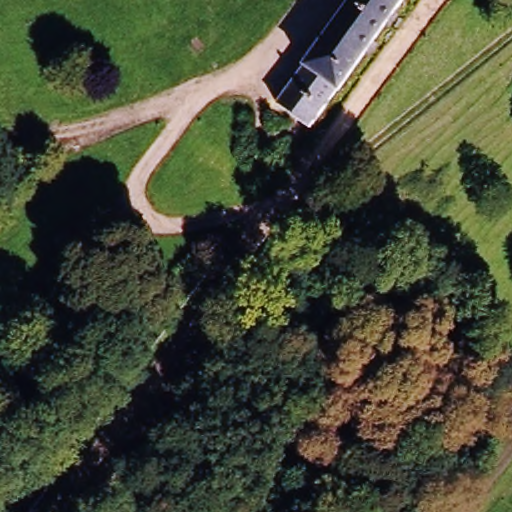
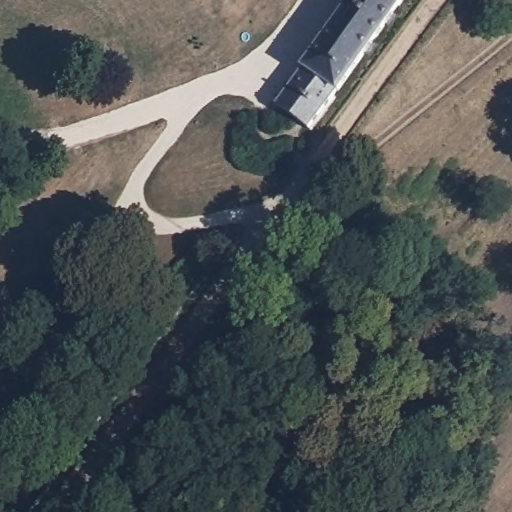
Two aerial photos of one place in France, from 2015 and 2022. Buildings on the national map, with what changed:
unchanged [(404,0),(303,135),(300,133),(270,111),(352,0),(404,0)]

